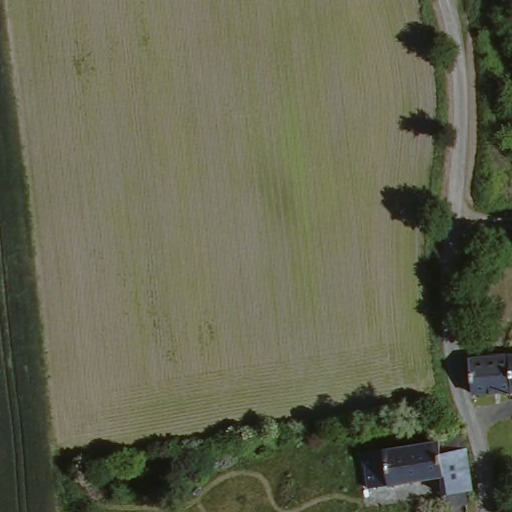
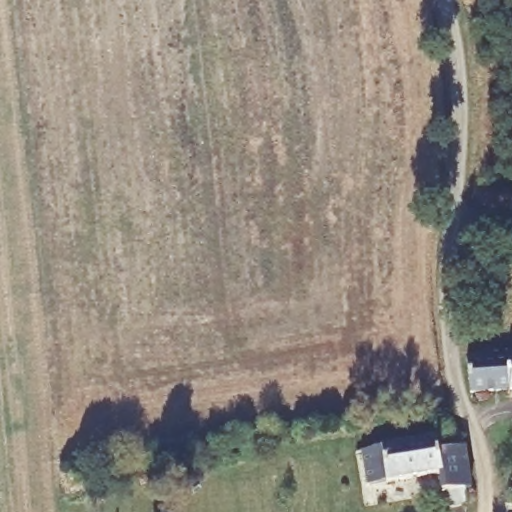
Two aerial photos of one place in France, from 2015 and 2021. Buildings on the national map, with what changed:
unchanged [(512,391),(510,392),(507,356),(512,355),(512,391)]
unchanged [(472,396),(468,360),(472,360),(507,356),(510,392),(472,396)]
unchanged [(434,485),(360,489),(357,454),(441,449),(465,447),(467,462),(475,512),(436,512),(434,485)]

